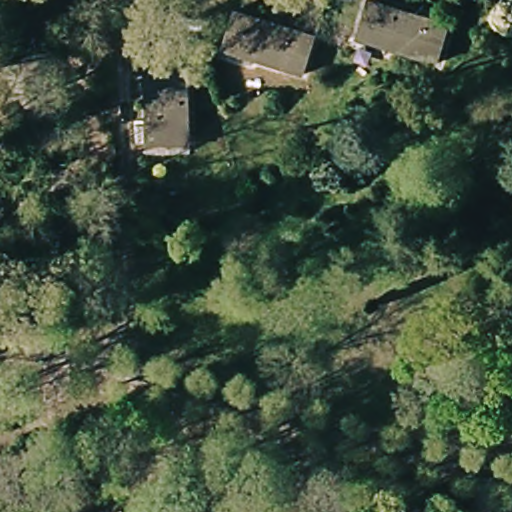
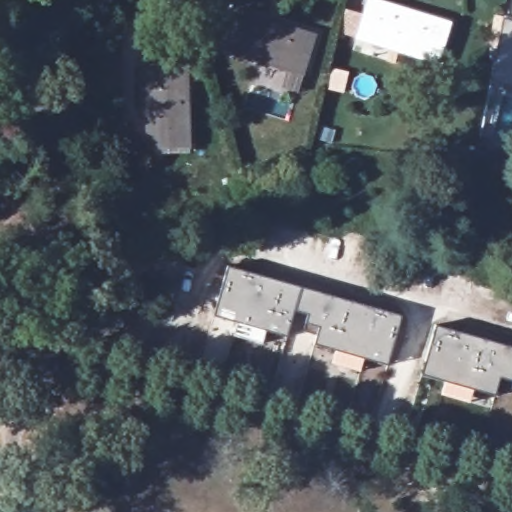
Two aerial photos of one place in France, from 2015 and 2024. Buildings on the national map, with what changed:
unchanged [(369,0),(384,0),(402,6),(411,8),(452,22),(438,62),(397,48),(358,35),(359,31),(369,0)]
unchanged [(222,46),(235,7),(265,17),(275,20),(315,34),(301,77),(260,64),(220,51),(222,46)]
new [(503,16),(512,19),(512,90),(490,84),(503,16)]
unchanged [(148,144),(148,134),(149,115),(149,103),(151,58),(193,60),(191,136),(190,145),(148,144)]
new [(388,365),(314,343),(317,334),(302,331),(305,321),(306,314),(294,311),(286,336),(215,316),(228,267),(402,315),(388,365)]
new [(493,393),(422,374),(436,326),(512,349),(512,380),(497,376),(493,393)]

